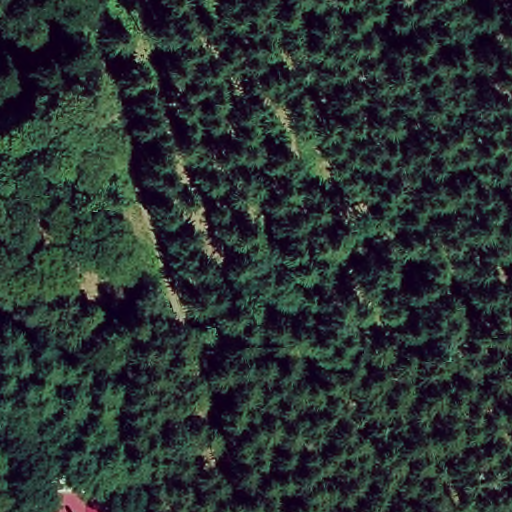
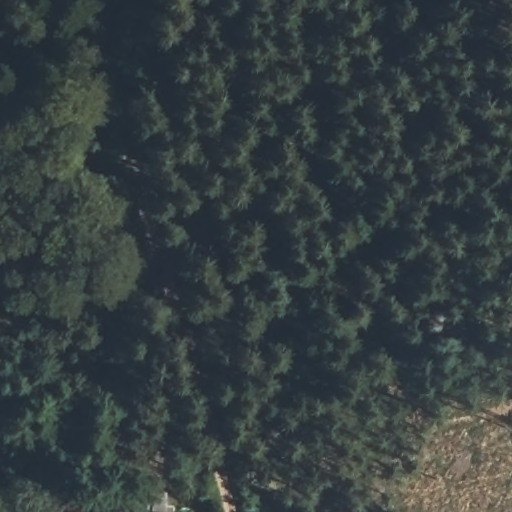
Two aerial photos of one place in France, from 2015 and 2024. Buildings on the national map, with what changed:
unchanged [(116,512),(57,512),(57,494),(116,496),(116,512)]

